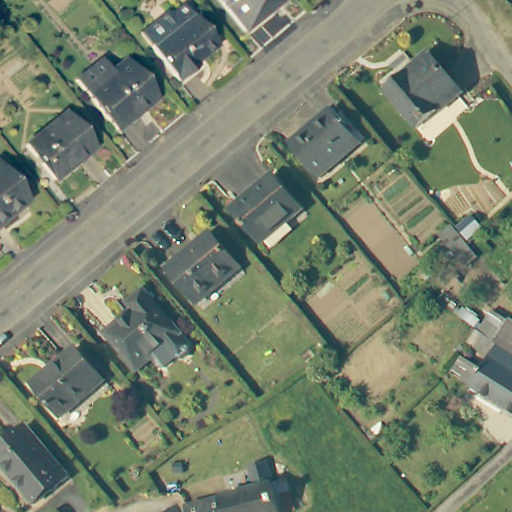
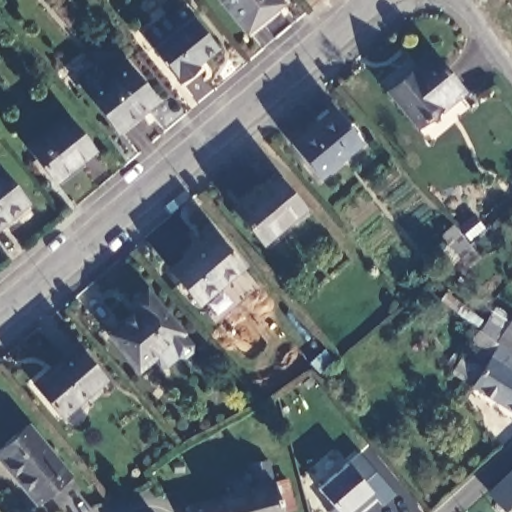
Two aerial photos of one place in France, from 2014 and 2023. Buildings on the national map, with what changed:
unchanged [(215,0),(279,0),(284,5),(247,36),(215,0)]
unchanged [(164,17),(172,17),(182,9),(216,50),(195,66),(198,71),(180,86),(140,37),(164,17)]
unchanged [(445,101),(416,125),(386,90),(414,65),(413,64),(427,50),(462,90),(447,103),(445,101)]
unchanged [(153,102),(114,133),(81,95),(71,83),(91,66),(95,69),(96,67),(101,72),(103,70),(106,75),(121,62),(153,102)]
unchanged [(291,145),(334,110),(362,142),(319,178),(291,145)]
unchanged [(61,116),(91,151),(52,183),(23,148),(61,116)]
unchanged [(0,221),(0,176),(21,204),(0,221)]
unchanged [(230,212),(272,179),(300,211),(259,246),(230,212)]
unchanged [(443,212),(469,243),(460,251),(434,221),(443,212)]
unchanged [(459,225),(471,215),(480,225),(468,235),(459,225)]
unchanged [(203,233),(238,275),(199,306),(164,265),(203,233)]
unchanged [(188,356),(181,363),(177,361),(169,365),(166,365),(158,355),(143,368),(105,325),(133,301),(128,295),(138,286),(190,350),(188,356)]
unchanged [(460,356),(481,369),(490,355),(470,340),(460,331),(468,321),(478,330),(498,296),(512,305),(512,318),(512,319),(512,387),(502,404),(472,385),(451,373),(460,356)]
unchanged [(27,388),(71,351),(99,385),(55,420),(27,388)]
unchanged [(502,404),(512,387),(512,410),(502,404)]
unchanged [(0,464),(0,441),(24,420),(66,472),(31,501),(0,464)]
new [(394,495),(382,505),(375,497),(357,512),(327,512),(332,507),(315,486),(344,463),(359,452),(394,495)]
unchanged [(264,463),(277,512),(220,512),(218,501),(250,492),(246,469),(264,463)]
new [(503,512),(485,493),(512,467),(512,504),(503,512)]
unchanged [(182,510),(218,501),(220,512),(182,512),(182,510)]

